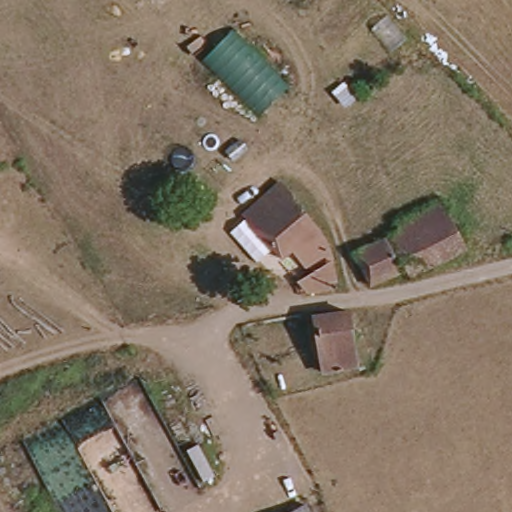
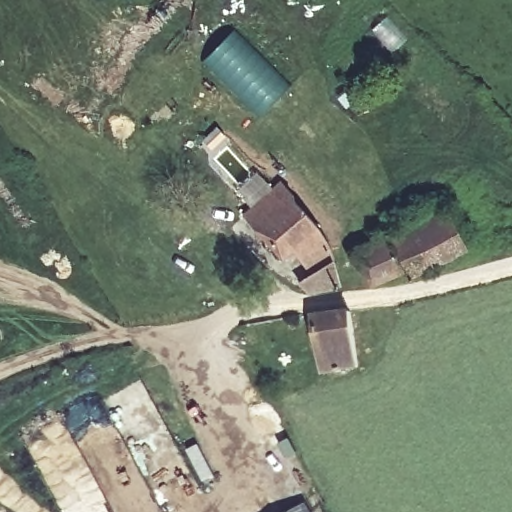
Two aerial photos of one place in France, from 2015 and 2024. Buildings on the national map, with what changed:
unchanged [(202,62),(230,33),(288,86),(260,116),(202,62)]
unchanged [(334,249),(337,252),(323,263),(328,282),(307,289),(297,278),(308,272),(289,249),(277,259),(241,216),(242,215),(282,178),(334,249)]
unchanged [(402,233),(437,213),(444,225),(458,251),(410,279),(407,272),(372,289),(360,257),(402,233)]
unchanged [(354,370),(337,375),(325,378),(310,325),(345,315),(354,370)]
unchanged [(316,508),(318,512),(307,512),(316,508)]

